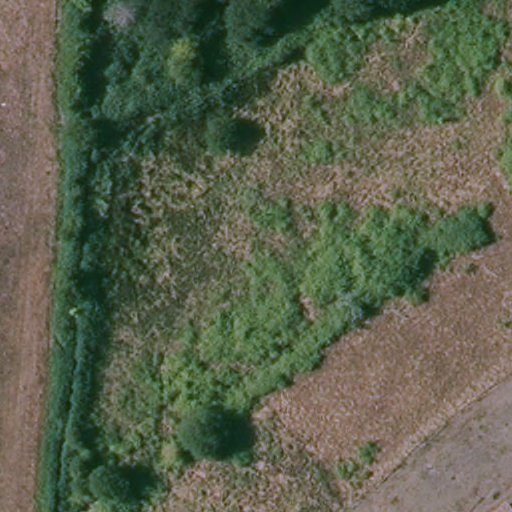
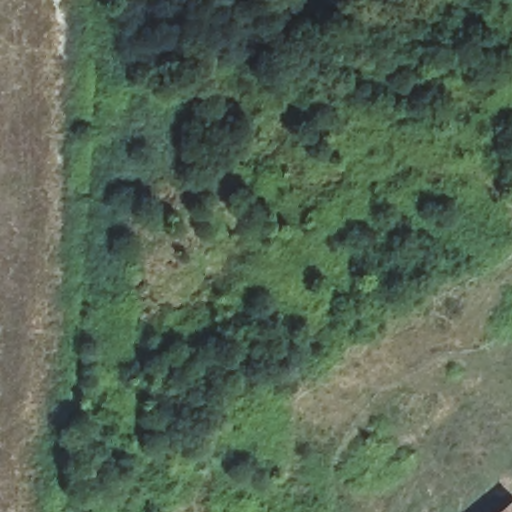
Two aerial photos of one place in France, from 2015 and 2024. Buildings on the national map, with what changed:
unchanged [(512,509),(512,512),(493,512),(505,501),(512,509)]

